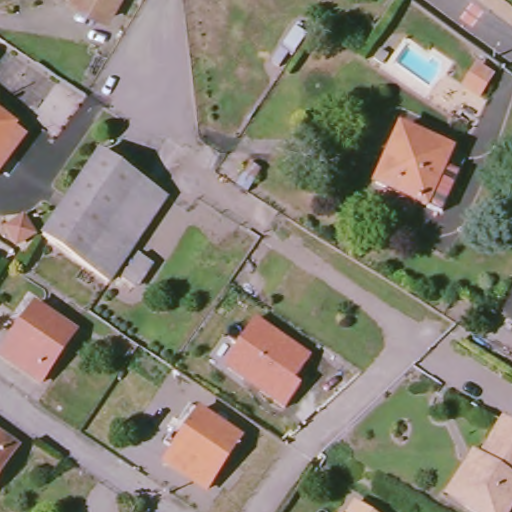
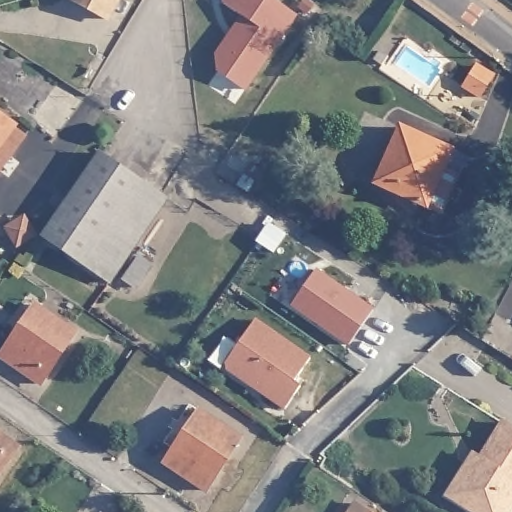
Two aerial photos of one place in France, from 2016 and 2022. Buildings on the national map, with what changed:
unchanged [(88,0),(115,0),(107,12),(88,0)]
new [(245,89),(218,72),(215,54),(242,15),(222,1),(224,0),(275,0),(296,14),(245,89)]
unchanged [(493,73),(480,97),(460,86),(474,62),(493,73)]
unchanged [(0,174),(0,114),(17,126),(30,135),(0,174)]
unchanged [(465,154),(433,209),(369,172),(401,119),(465,154)]
unchanged [(48,239),(106,153),(170,197),(112,282),(48,239)]
new [(317,269),(373,307),(350,345),(291,306),(317,269)]
unchanged [(35,303),(75,333),(40,383),(0,356),(0,353),(35,303)]
unchanged [(309,352),(290,379),(298,385),(283,406),(221,365),(253,316),(309,352)]
unchanged [(245,445),(210,492),(169,464),(174,456),(165,449),(193,410),(245,445)]
unchanged [(470,508),(449,495),(455,487),(477,453),(485,458),(508,422),(512,424),(512,510),(511,512),(475,512),(470,508)]
unchanged [(18,448),(0,474),(0,436),(18,448)]
unchanged [(360,502),(375,512),(354,512),(360,502)]

